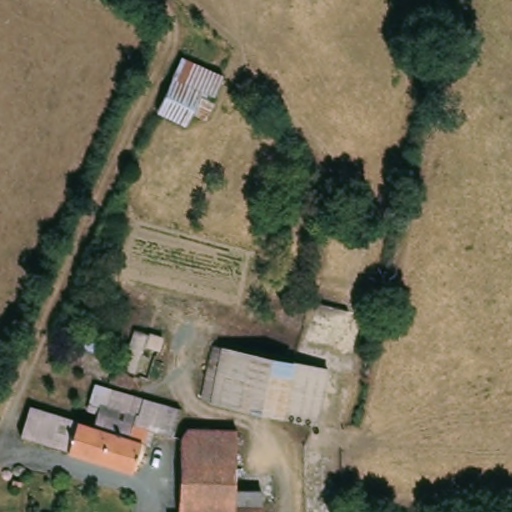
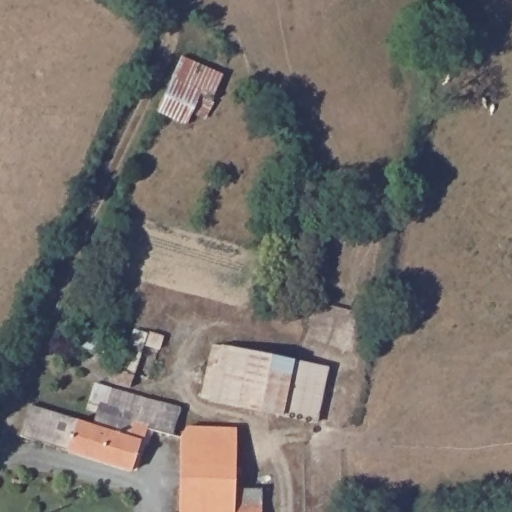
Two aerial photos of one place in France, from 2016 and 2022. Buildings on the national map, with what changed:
unchanged [(229,77),(215,111),(201,105),(189,133),(156,118),(184,54),(229,77)]
unchanged [(121,372),(135,332),(139,333),(165,342),(156,362),(142,357),(131,389),(110,382),(109,382),(114,370),(121,372)]
unchanged [(100,345),(96,356),(77,349),(81,338),(100,345)]
unchanged [(217,350),(240,356),(326,379),(314,426),(201,397),(210,364),(214,349),(217,350)]
unchanged [(91,394),(94,384),(130,395),(117,431),(82,420),(91,394)]
unchanged [(117,431),(130,395),(179,410),(171,436),(144,432),(129,474),(71,453),(77,436),(81,424),(82,420),(117,431)]
unchanged [(17,434),(27,403),(82,420),(81,424),(77,436),(71,453),(17,434)]
unchanged [(191,425),(239,429),(239,433),(235,501),(261,503),(261,512),(180,512),(182,450),(191,425)]

